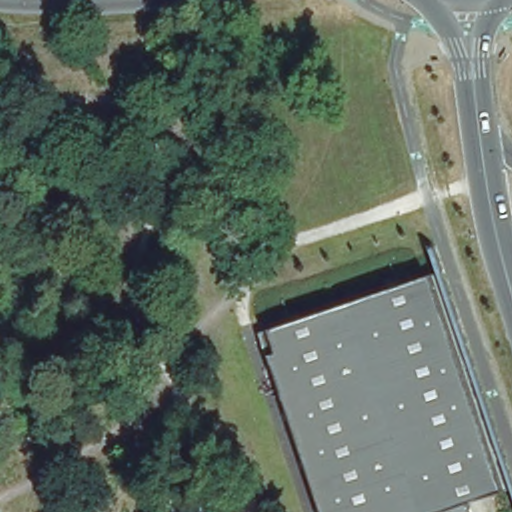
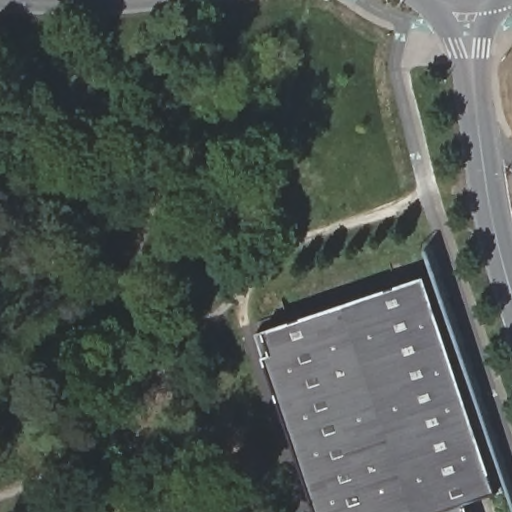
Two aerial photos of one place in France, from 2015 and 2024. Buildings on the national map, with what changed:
unchanged [(251,323),(431,270),(505,486),(466,500),(470,512),(315,512),(251,323)]

